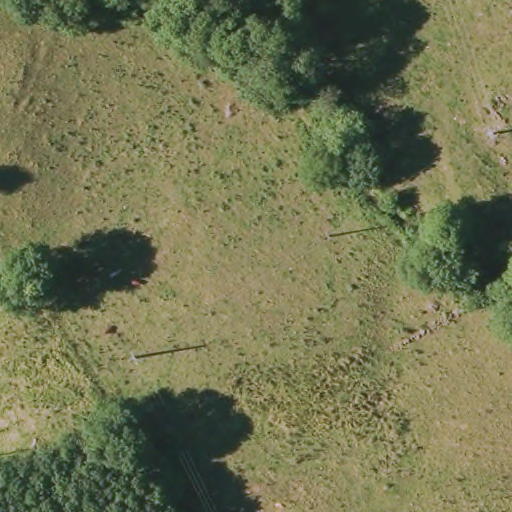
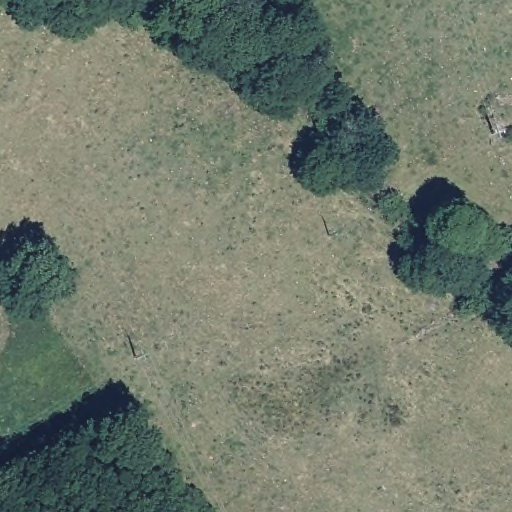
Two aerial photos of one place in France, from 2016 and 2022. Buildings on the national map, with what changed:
[]

